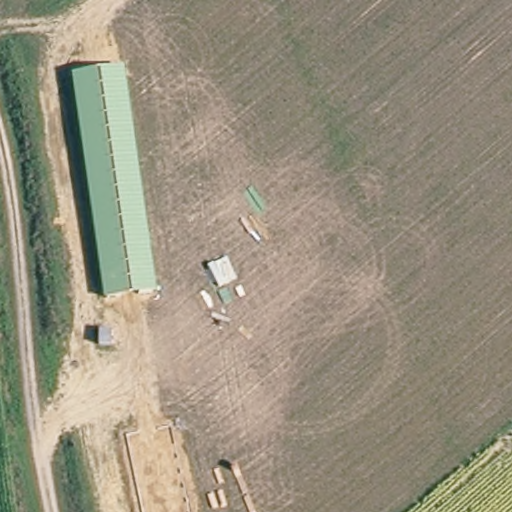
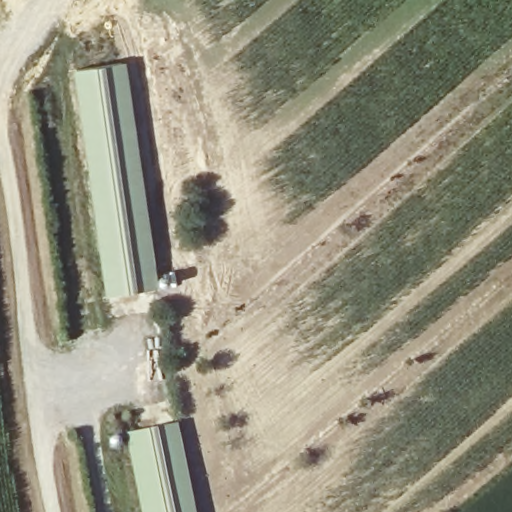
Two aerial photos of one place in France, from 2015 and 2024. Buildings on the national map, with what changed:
unchanged [(73,69),(123,62),(157,287),(104,294),(73,69)]
new [(171,417),(191,512),(141,512),(123,427),(171,417)]

